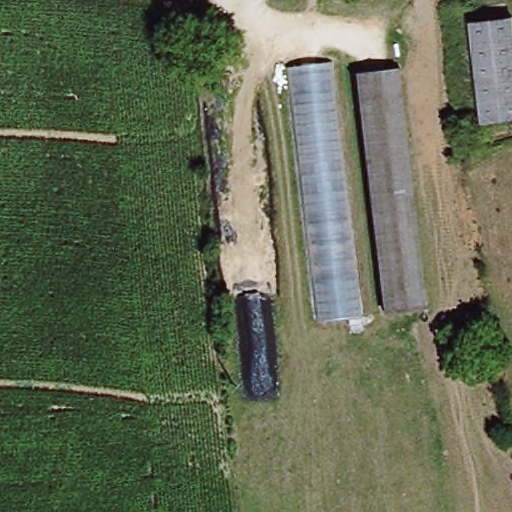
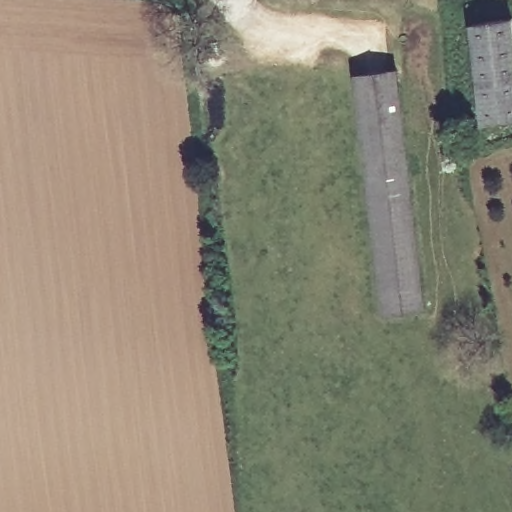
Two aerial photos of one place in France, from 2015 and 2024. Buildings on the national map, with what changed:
unchanged [(481,121),(475,25),(512,23),(512,119),(481,121)]
unchanged [(400,66),(424,308),(386,311),(362,69),(400,66)]
demolished [(355,322),(312,324),(283,71),(330,68),(355,322)]

